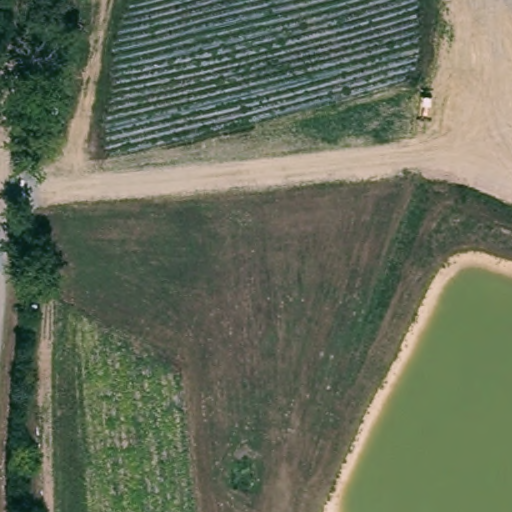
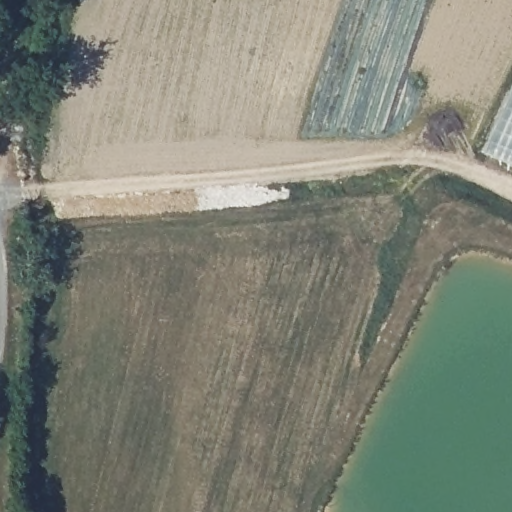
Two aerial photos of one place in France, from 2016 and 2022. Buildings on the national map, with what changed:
new [(512,88),(512,167),(482,154),(512,88)]

